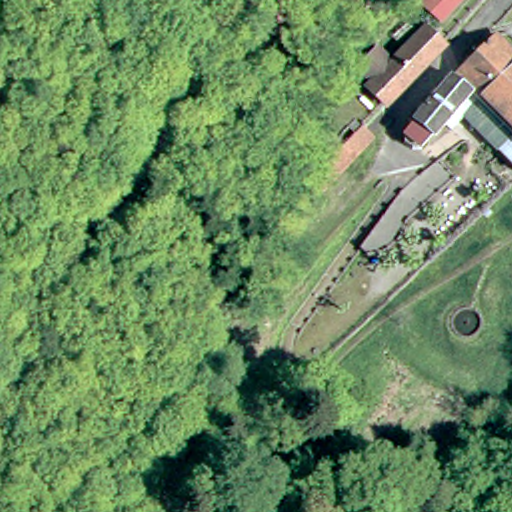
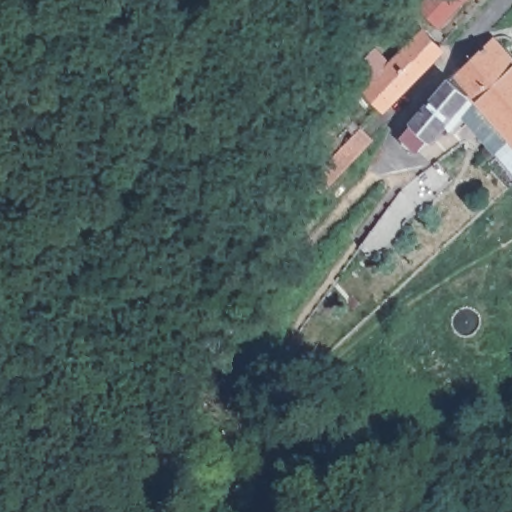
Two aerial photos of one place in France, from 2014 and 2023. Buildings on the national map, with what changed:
unchanged [(428,0),(479,0),(449,29),(424,4),(428,0)]
unchanged [(399,61),(431,34),(452,53),(389,112),(370,91),(380,81),(368,67),(387,48),(399,61)]
unchanged [(468,110),(453,129),(449,124),(427,152),(422,154),(416,153),(411,150),(409,144),(411,138),(413,135),(409,132),(482,45),(491,34),(512,54),(512,152),(468,110)]
unchanged [(364,130),(376,142),(325,192),(314,178),(364,130)]
unchanged [(414,186),(438,165),(443,162),(459,177),(415,219),(409,237),(393,250),(373,248),(372,235),(392,209),(414,186)]

